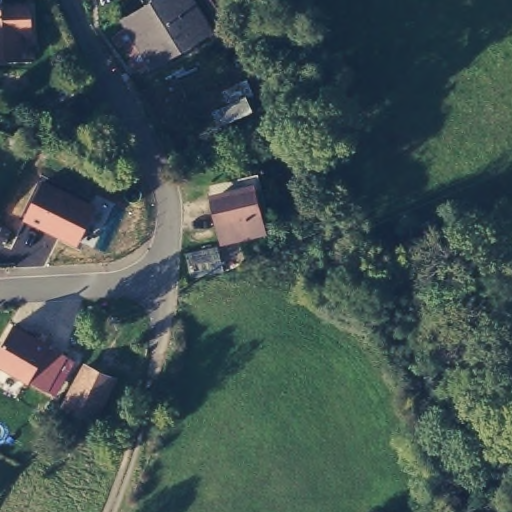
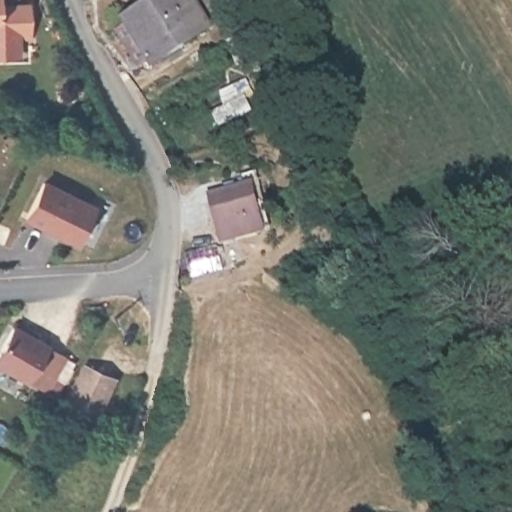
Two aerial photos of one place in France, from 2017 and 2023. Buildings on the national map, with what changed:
unchanged [(5,0),(32,0),(32,33),(20,33),(20,51),(0,51),(0,0),(5,0)]
unchanged [(151,59),(126,18),(153,0),(192,0),(207,25),(151,59)]
unchanged [(225,104),(221,89),(255,75),(260,94),(246,98),(250,110),(217,125),(210,110),(225,104)]
unchanged [(95,203),(76,244),(24,217),(44,179),(95,203)]
unchanged [(209,197),(248,188),(256,186),(268,225),(260,227),(220,236),(209,197)]
unchanged [(185,273),(182,250),(217,247),(221,267),(185,273)]
unchanged [(46,389),(0,366),(0,350),(13,324),(67,353),(46,389)]
unchanged [(74,413),(77,408),(68,404),(88,366),(120,380),(100,419),(92,415),(88,420),(74,413)]

